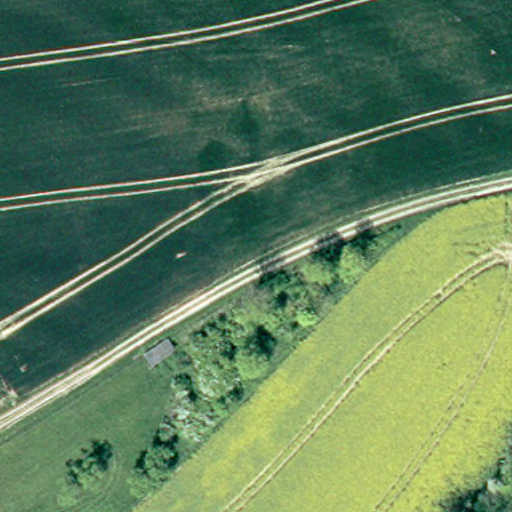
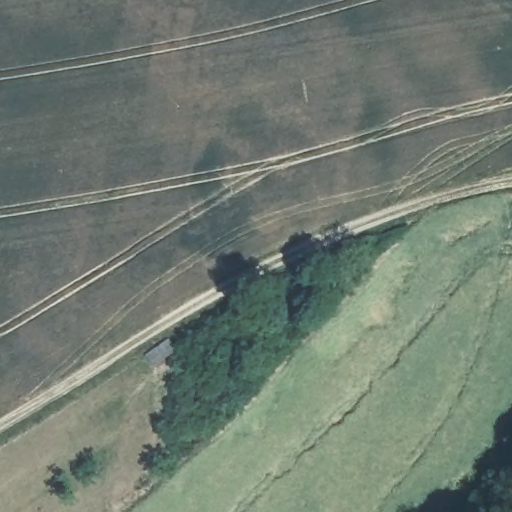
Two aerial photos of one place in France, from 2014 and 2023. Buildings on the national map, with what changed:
[]

